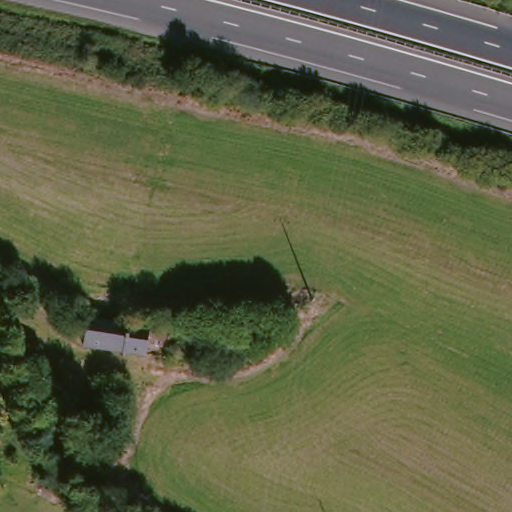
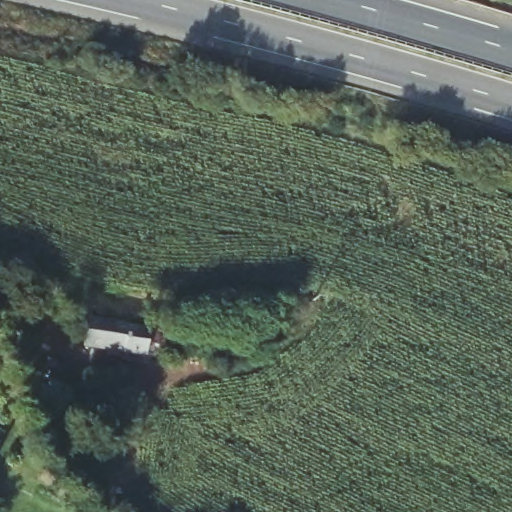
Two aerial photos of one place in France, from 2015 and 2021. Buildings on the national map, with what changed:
unchanged [(159,333),(154,359),(91,347),(96,322),(159,333)]

